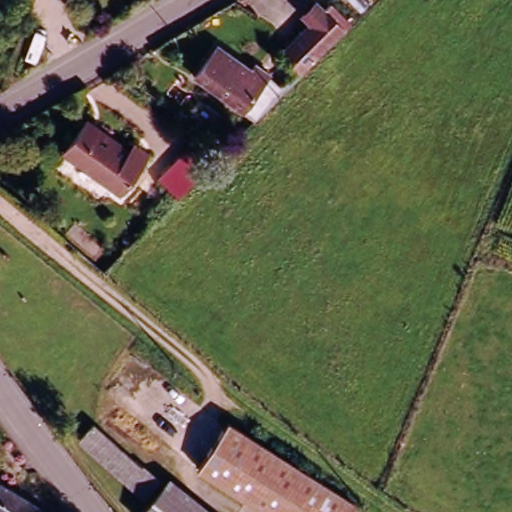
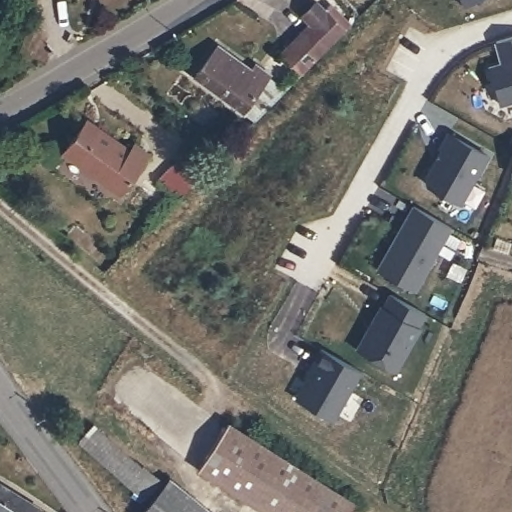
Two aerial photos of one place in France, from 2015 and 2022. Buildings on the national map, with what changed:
new [(465,5),(463,0),(474,0),(465,5)]
unchanged [(285,49),(323,10),(343,30),(305,69),(285,49)]
new [(492,64),(504,60),(498,40),(512,36),(512,99),(502,102),(492,64)]
unchanged [(257,76),(262,70),(280,82),(252,120),(200,80),(222,50),(257,76)]
unchanged [(126,153),(134,144),(148,156),(117,195),(58,150),(83,120),(126,153)]
new [(489,154),(463,200),(431,181),(429,175),(446,146),(442,144),(449,131),(489,154)]
unchanged [(152,176),(182,148),(197,164),(168,194),(152,176)]
new [(512,169),(512,174),(510,174),(512,169)]
new [(450,227),(417,288),(380,267),(413,206),(450,227)]
new [(427,313),(420,325),(422,326),(397,370),(355,347),(380,303),(382,304),(388,292),(427,313)]
new [(362,371),(335,420),(295,397),(305,377),(302,376),(320,348),(362,371)]
unchanged [(352,512),(263,512),(202,467),(235,422),(353,510),(352,512)]
unchanged [(152,476),(140,493),(75,445),(87,429),(152,476)]
unchanged [(2,481),(48,512),(0,512),(0,480),(2,481)]
unchanged [(143,512),(172,480),(210,511),(209,512),(143,512)]
unchanged [(209,512),(210,511),(210,512),(209,512)]

